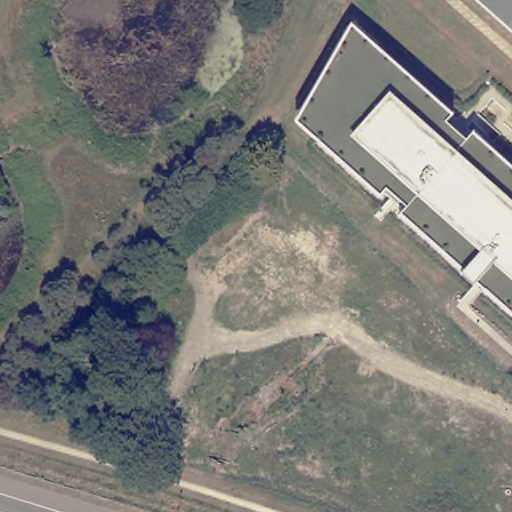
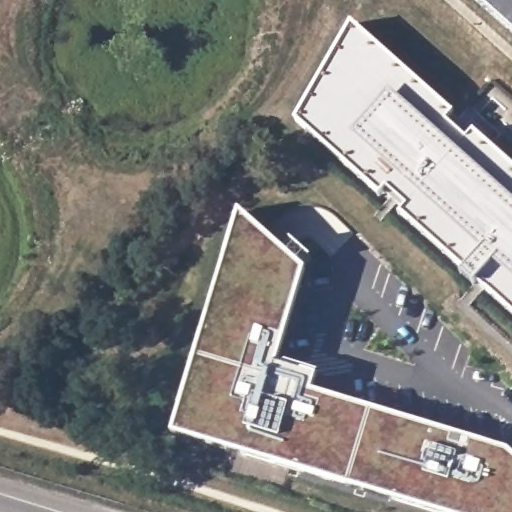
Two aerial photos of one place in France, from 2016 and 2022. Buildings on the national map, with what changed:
unchanged [(512,33),(474,0),(512,0),(512,33)]
unchanged [(512,313),(295,120),(351,22),(512,166),(512,313)]
new [(302,270),(273,365),(318,377),(314,392),(508,451),(512,454),(512,512),(425,512),(169,436),(237,212),(302,270)]
demolished [(235,285),(215,270),(263,219),(310,259),(307,266),(323,280),(296,310),(279,293),(282,290),(254,265),(243,276),(235,285)]

